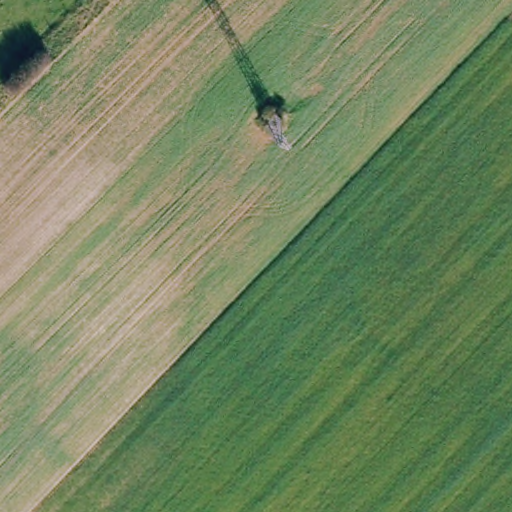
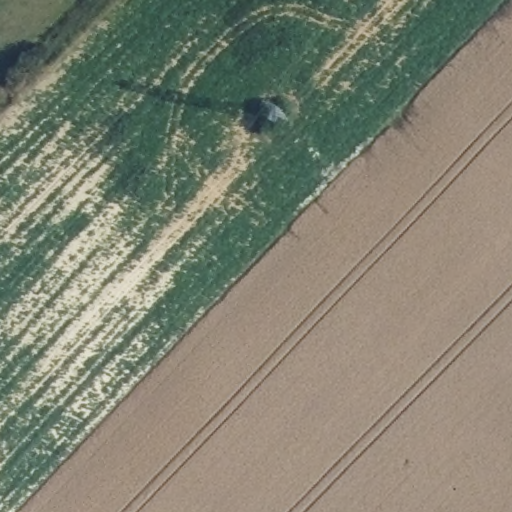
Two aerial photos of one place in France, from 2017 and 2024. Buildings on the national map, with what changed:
[]

